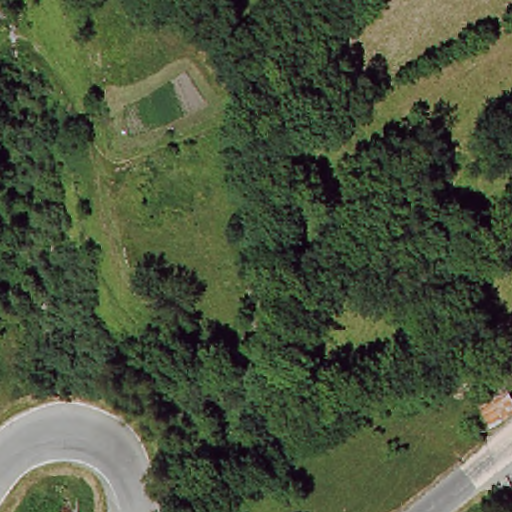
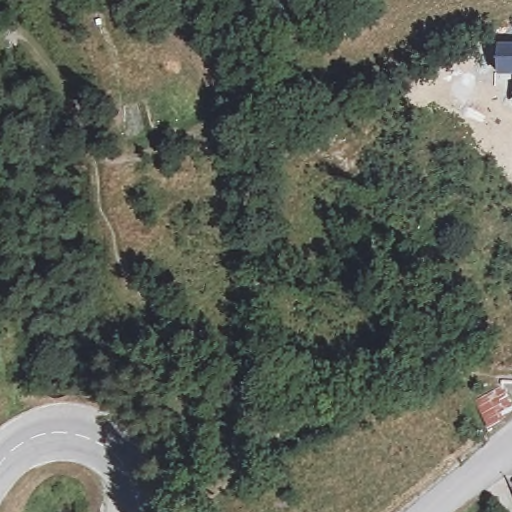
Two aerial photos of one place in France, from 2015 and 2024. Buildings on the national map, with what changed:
new [(499,44),(512,44),(512,79),(498,78),(499,44)]
unchanged [(501,386),(512,402),(512,411),(490,428),(474,408),(501,386)]

